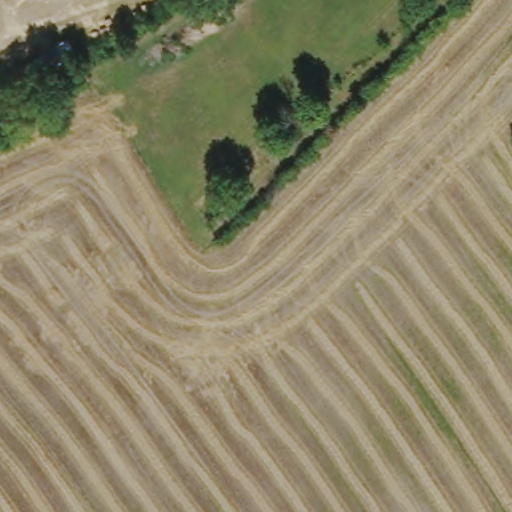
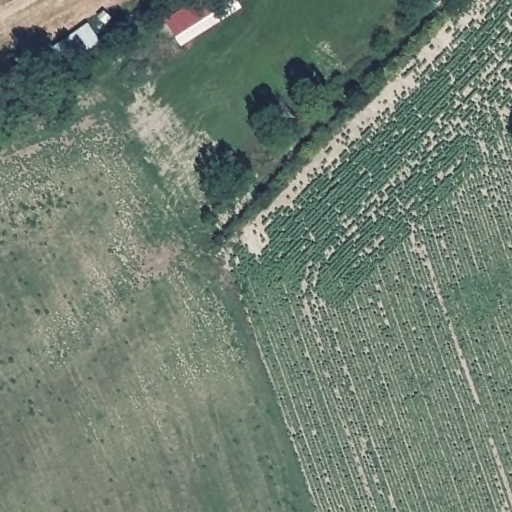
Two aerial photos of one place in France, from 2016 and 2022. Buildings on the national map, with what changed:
unchanged [(47,56),(57,71),(30,87),(21,73),(47,56)]

